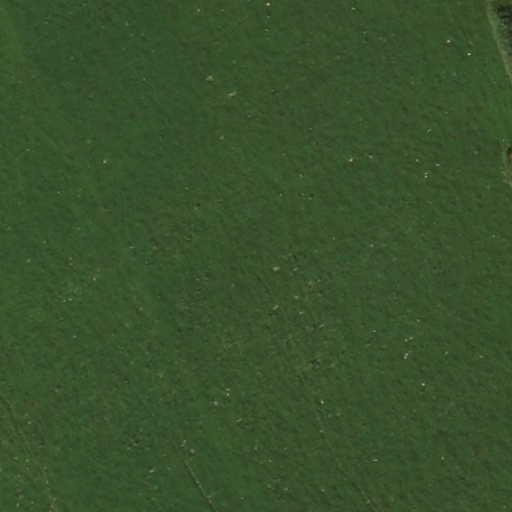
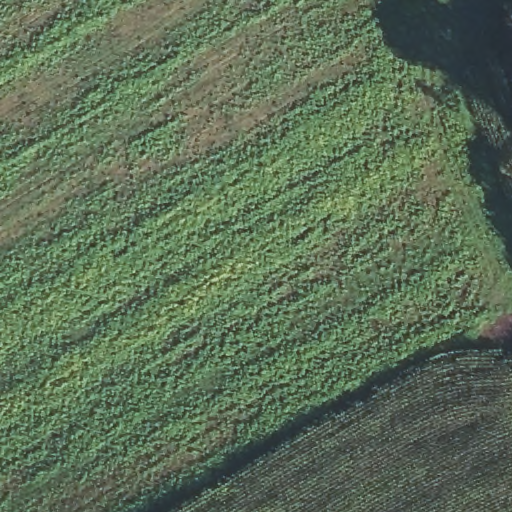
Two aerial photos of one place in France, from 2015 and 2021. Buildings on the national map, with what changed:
[]

